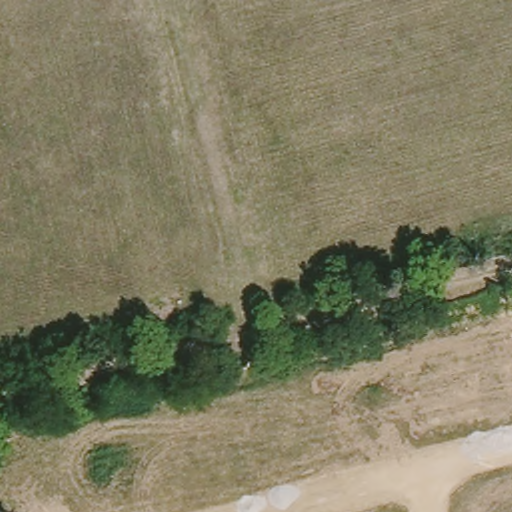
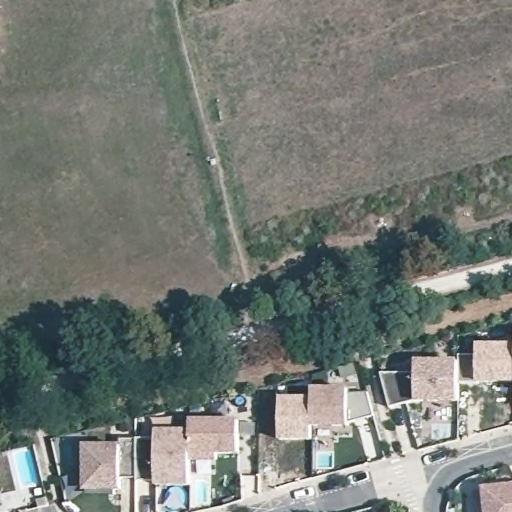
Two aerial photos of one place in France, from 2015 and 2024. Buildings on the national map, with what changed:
new [(478,383),(459,383),(459,361),(459,356),(478,359),(478,345),(512,345),(512,383),(478,383)]
new [(416,371),(416,361),(459,361),(459,400),(416,400),(389,407),(381,372),(416,371)]
new [(349,387),(349,392),(368,392),(374,415),(349,422),(349,428),(311,428),(311,387),(349,387)]
new [(311,397),(311,428),(313,428),(313,442),(281,441),(281,398),(311,397)]
new [(239,419),(239,455),(217,455),(216,461),(191,462),(190,427),(190,419),(239,419)]
new [(156,437),(156,427),(190,427),(191,462),(190,482),(156,482),(156,478),(137,476),(136,438),(156,437)]
new [(137,476),(121,476),(121,492),(83,492),(83,444),(120,444),(119,438),(136,438),(137,476)]
new [(484,487),(512,483),(512,512),(486,512),(484,487)]

